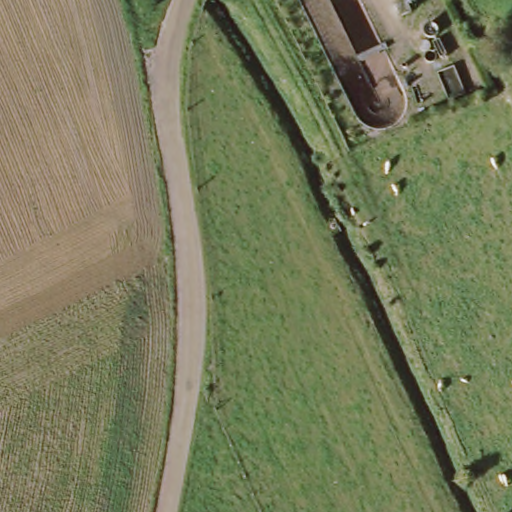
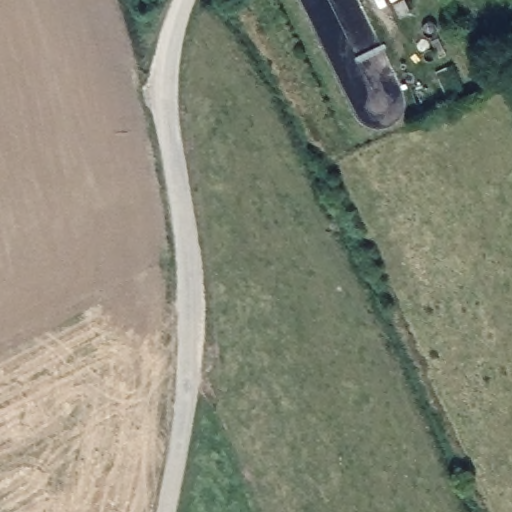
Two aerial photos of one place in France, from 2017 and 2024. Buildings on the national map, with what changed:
unchanged [(400,17),(393,0),(407,0),(412,12),(400,17)]

